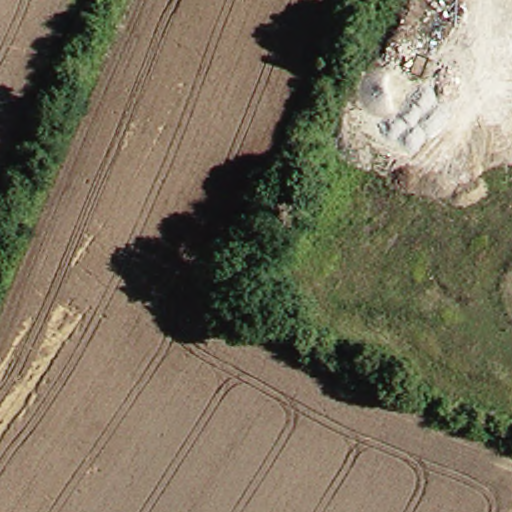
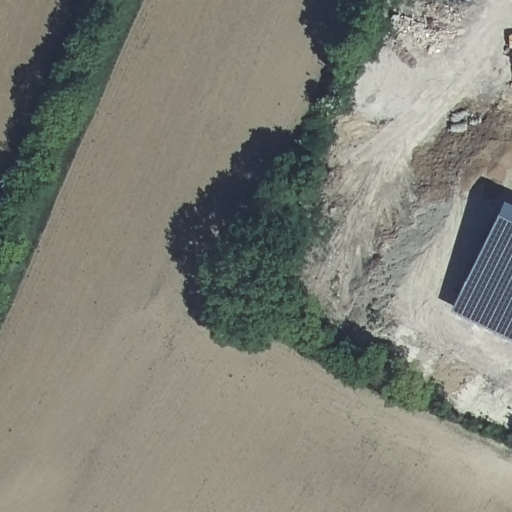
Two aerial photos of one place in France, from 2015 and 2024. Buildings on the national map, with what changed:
new [(491,207),(512,216),(512,347),(442,315),(491,207)]

